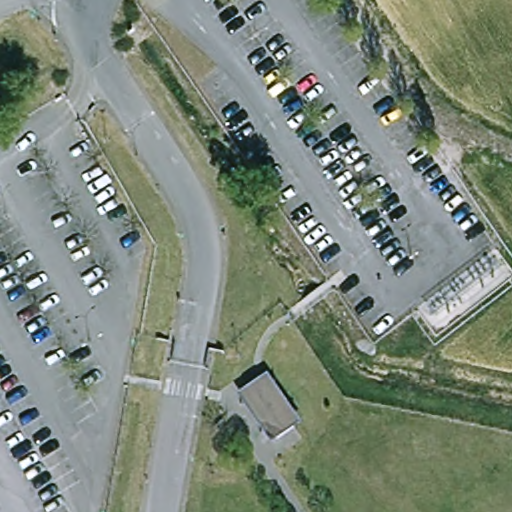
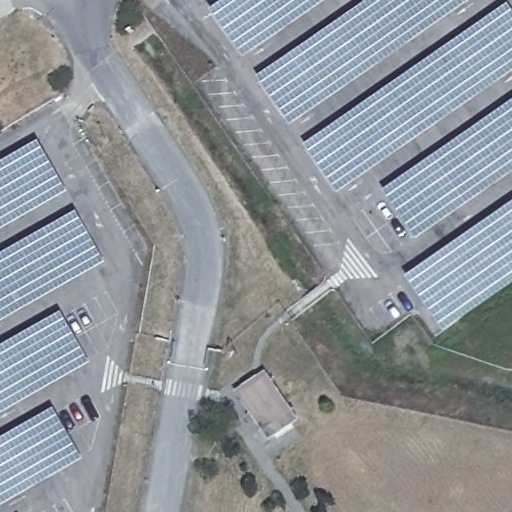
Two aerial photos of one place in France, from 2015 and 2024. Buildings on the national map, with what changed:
new [(226,0),(323,0),(247,55),(213,9),(226,0)]
new [(364,0),(466,0),(295,123),(260,75),(364,0)]
new [(512,66),(342,188),(309,142),(505,0),(512,0),(512,66)]
new [(512,173),(424,237),(389,188),(512,99),(512,173)]
new [(36,137),(66,188),(0,228),(0,158),(36,137)]
new [(512,289),(457,329),(418,275),(512,207),(512,289)]
new [(78,209),(108,260),(0,325),(0,256),(78,209)]
new [(64,309),(93,358),(0,414),(0,347),(64,309)]
unchanged [(300,414),(273,432),(246,393),(273,375),(300,414)]
new [(89,457),(0,510),(0,441),(58,406),(89,457)]

